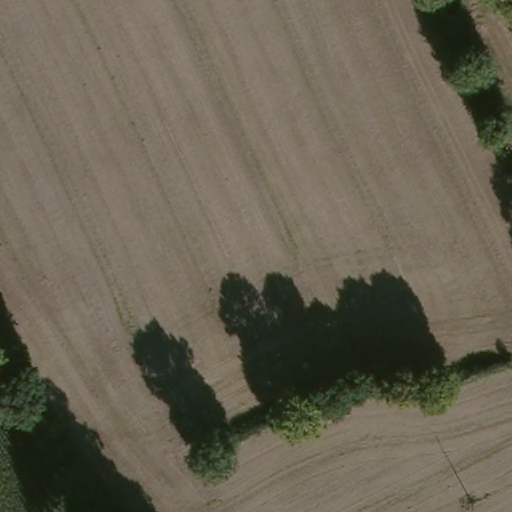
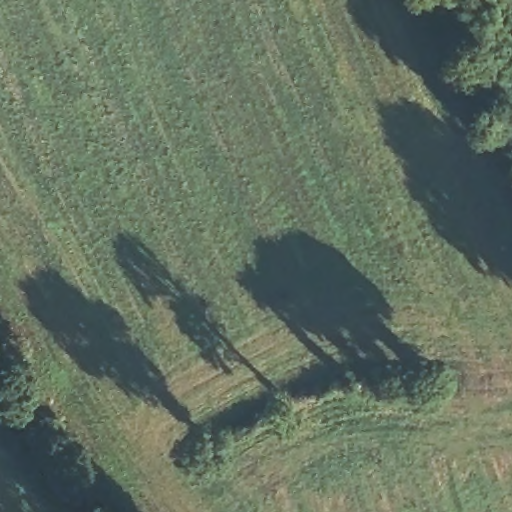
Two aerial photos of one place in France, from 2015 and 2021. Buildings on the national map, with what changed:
[]

